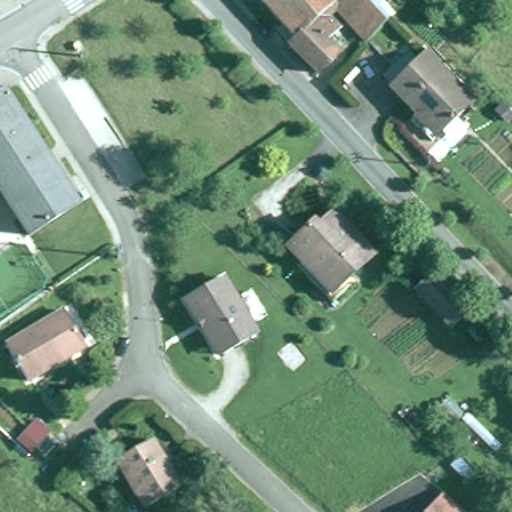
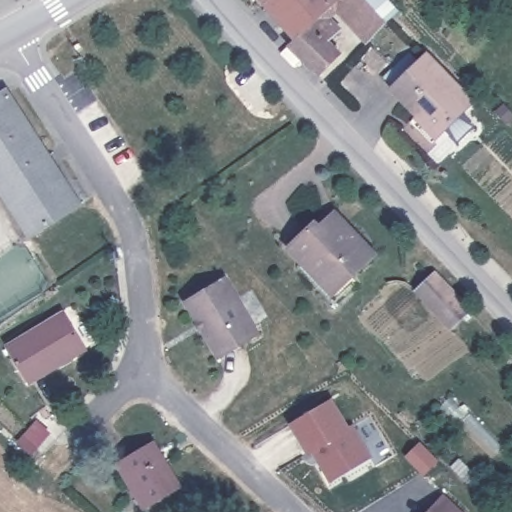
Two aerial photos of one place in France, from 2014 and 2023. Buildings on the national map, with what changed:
unchanged [(322,8),(337,24),(327,34),(338,46),(317,67),(287,37),(292,32),(264,0),(331,0),(322,8)]
unchanged [(375,6),(385,16),(367,35),(335,0),(382,0),(375,6)]
unchanged [(418,115),(392,88),(394,86),(384,76),(411,50),(420,59),(427,53),(474,100),(443,130),(438,135),(418,115)]
unchanged [(0,80),(1,79),(74,194),(24,226),(0,188),(0,80)]
unchanged [(339,292),(335,296),(297,260),(303,253),(288,239),(313,212),(319,218),(333,203),(375,246),(335,288),(339,292)]
unchanged [(219,350),(185,296),(223,271),(257,326),(219,350)]
unchanged [(467,312),(450,329),(414,293),(432,276),(467,312)]
unchanged [(10,342),(68,307),(87,338),(61,354),(65,359),(32,379),(10,342)]
new [(332,396),(349,425),(354,422),(374,457),(331,481),(312,450),(307,453),(289,422),(332,396)]
new [(35,422),(47,433),(29,454),(17,442),(35,422)]
unchanged [(145,503),(115,454),(151,432),(180,481),(145,503)]
unchanged [(467,512),(425,512),(445,491),(467,512)]

